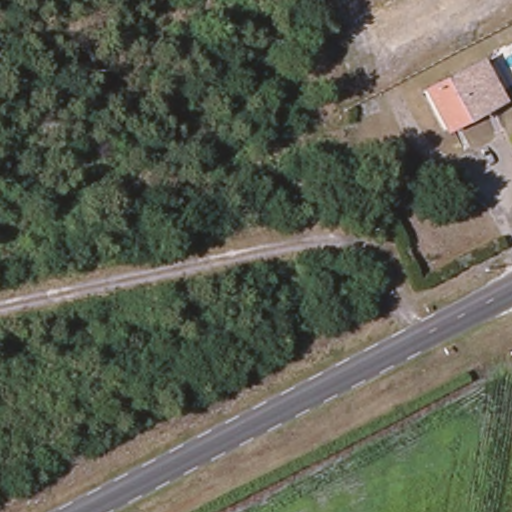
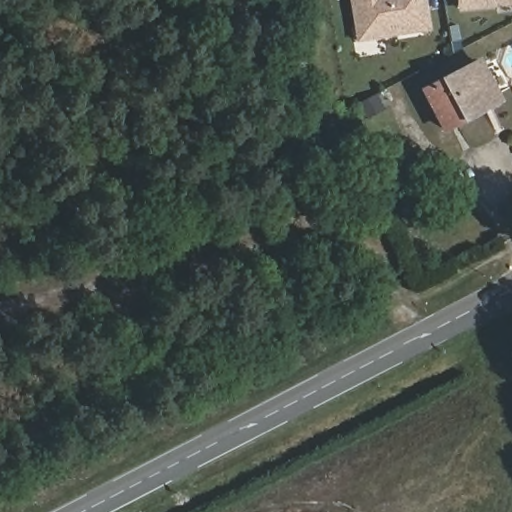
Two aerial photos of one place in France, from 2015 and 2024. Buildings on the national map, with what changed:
new [(357,44),(349,0),(427,0),(432,31),(357,44)]
demolished [(373,0),(381,0),(375,2),(373,0)]
new [(458,12),(457,0),(512,0),(512,6),(458,12)]
unchanged [(421,90),(477,62),(498,100),(442,130),(421,90)]

